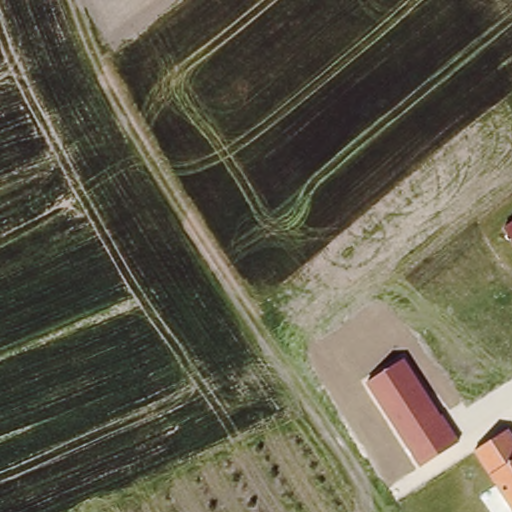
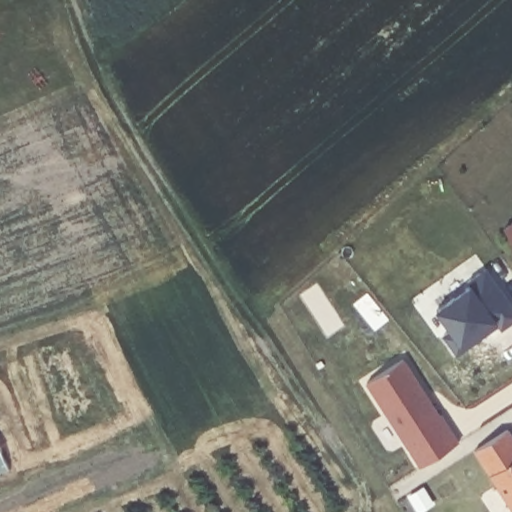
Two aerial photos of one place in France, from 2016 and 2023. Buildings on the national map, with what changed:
unchanged [(504,227),(512,222),(512,238),(504,227)]
new [(472,282),(488,268),(512,301),(512,323),(500,331),(497,325),(457,354),(443,335),(452,332),(437,310),(472,282)]
unchanged [(405,360),(460,442),(420,466),(366,383),(405,360)]
unchanged [(509,429),(512,434),(512,508),(476,451),(509,429)]

